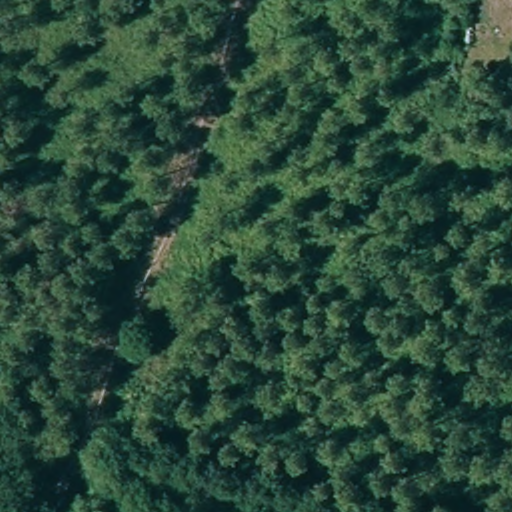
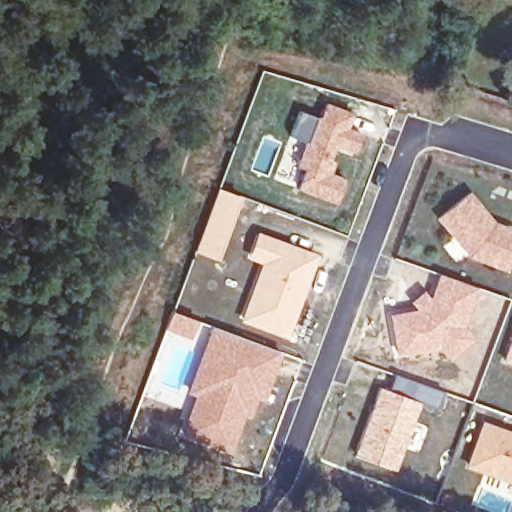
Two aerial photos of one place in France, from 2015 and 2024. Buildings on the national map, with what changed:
new [(301,110),(318,116),(325,101),(357,113),(351,126),(368,134),(359,158),(337,150),(335,156),(337,158),(332,172),(346,178),(336,205),(296,190),(302,169),(296,166),(305,143),(289,136),(301,110)]
new [(218,186),(242,196),(217,261),(193,252),(218,186)]
new [(470,190),(496,221),(512,227),(512,256),(507,272),(477,261),(468,256),(458,264),(443,247),(452,239),(436,219),(470,190)]
new [(261,264),(247,259),(257,231),(321,255),(287,339),(240,322),(261,264)]
new [(414,308),(410,301),(423,290),(429,295),(438,273),(480,288),(467,328),(473,332),(453,360),(437,350),(396,356),(388,314),(414,308)]
new [(173,309),(201,320),(193,341),(165,331),(173,309)]
new [(194,397),(186,393),(211,325),(282,351),(263,401),(258,399),(250,418),(245,415),(228,458),(177,440),(194,397)]
new [(512,336),(512,364),(503,361),(512,336)]
new [(388,389),(395,373),(444,392),(437,408),(422,402),(393,470),(354,455),(378,386),(388,389)]
new [(482,420),(512,431),(512,484),(466,468),(482,420)]

